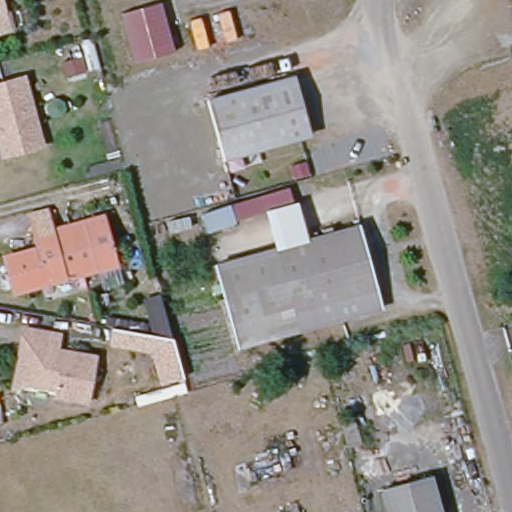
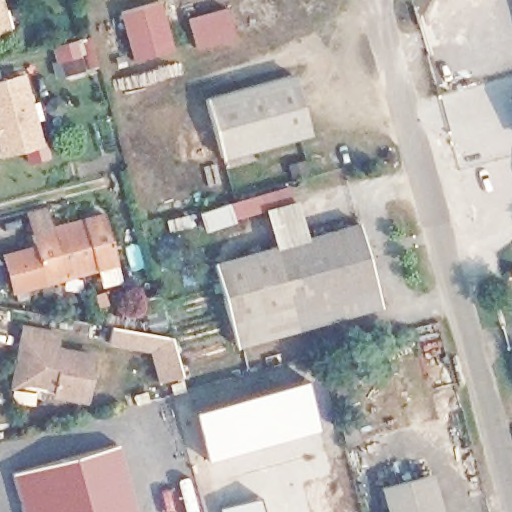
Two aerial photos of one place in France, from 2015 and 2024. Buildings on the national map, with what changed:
unchanged [(0,42),(0,0),(5,0),(11,23),(15,38),(0,42)]
unchanged [(155,0),(158,0),(172,48),(133,59),(119,10),(155,0)]
new [(196,48),(189,17),(229,8),(236,39),(196,48)]
unchanged [(84,67),(88,81),(69,86),(65,72),(84,67)]
unchanged [(293,71),(309,129),(221,153),(205,95),(293,71)]
unchanged [(22,73),(39,141),(1,150),(0,148),(0,78),(22,73)]
unchanged [(263,205),(291,197),(301,233),(273,242),(263,205)]
unchanged [(236,227),(200,234),(195,209),(231,202),(236,227)]
unchanged [(104,212),(116,260),(44,280),(31,232),(104,212)]
unchanged [(273,242),(301,233),(352,222),(378,310),(239,350),(216,258),(273,242)]
new [(44,280),(116,260),(122,280),(102,285),(98,270),(12,293),(1,253),(34,244),(44,280)]
unchanged [(158,337),(149,304),(164,299),(165,304),(173,333),(158,337)]
unchanged [(58,391),(60,384),(36,380),(17,376),(23,340),(26,325),(61,331),(59,346),(96,353),(88,397),(58,391)]
unchanged [(186,382),(168,388),(160,356),(117,348),(120,332),(176,342),(186,382)]
new [(305,377),(319,429),(206,461),(191,409),(305,377)]
new [(117,444),(139,512),(22,512),(10,472),(117,444)]
unchanged [(430,470),(442,512),(393,512),(386,483),(430,470)]
new [(261,512),(218,512),(217,506),(257,495),(261,512)]

